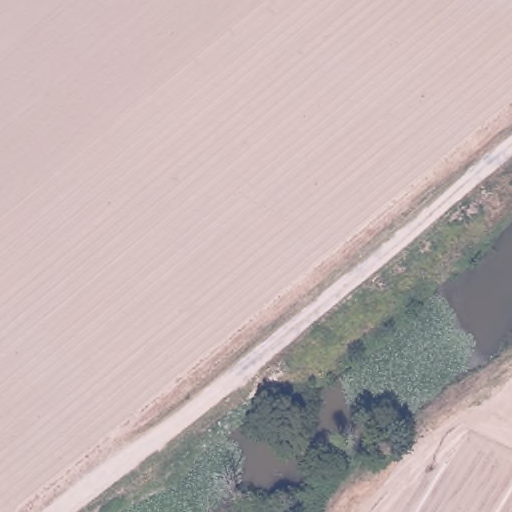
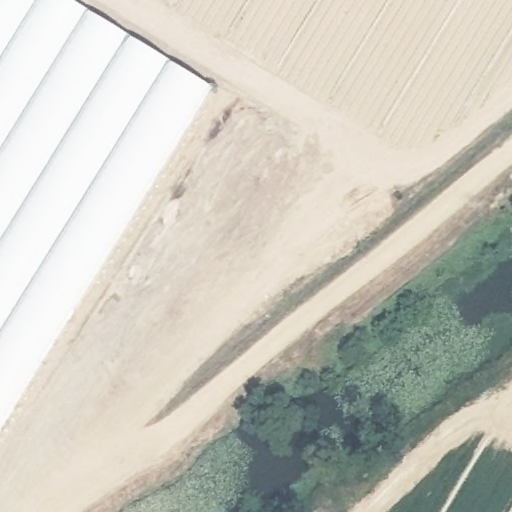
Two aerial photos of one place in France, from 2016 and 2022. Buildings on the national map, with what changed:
new [(212,86),(0,430),(0,0),(72,0),(212,86)]

